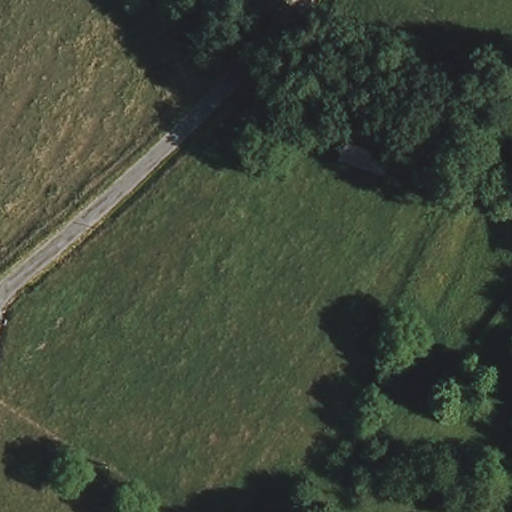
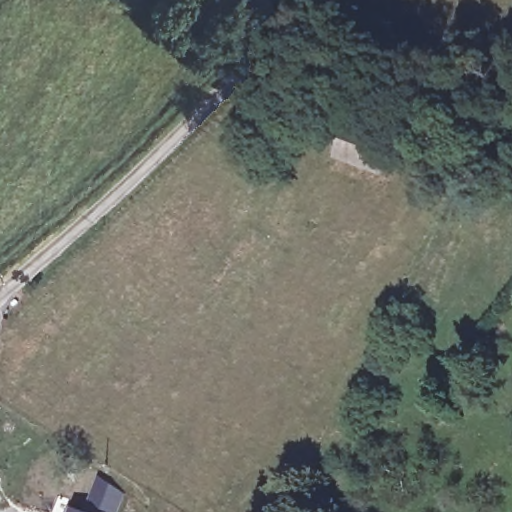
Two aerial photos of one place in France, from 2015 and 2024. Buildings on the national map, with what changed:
unchanged [(391,138),(378,169),(342,156),(355,125),(391,138)]
new [(100,476),(125,494),(119,512),(88,512),(100,476)]
new [(75,508),(86,512),(73,512),(75,508)]

